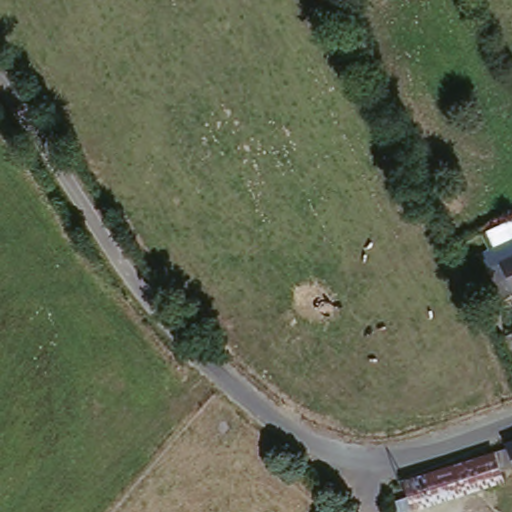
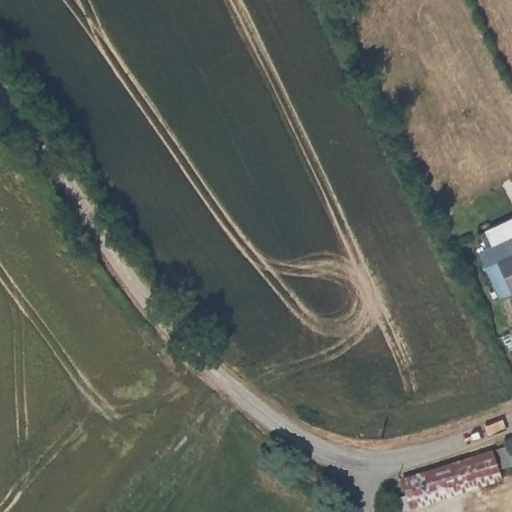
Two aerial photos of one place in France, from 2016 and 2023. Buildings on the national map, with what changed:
unchanged [(499,267),(492,254),(512,244),(512,295),(499,267)]
unchanged [(507,441),(506,437),(512,435),(512,463),(501,466),(504,476),(401,508),(397,495),(410,492),(405,476),(507,441)]

